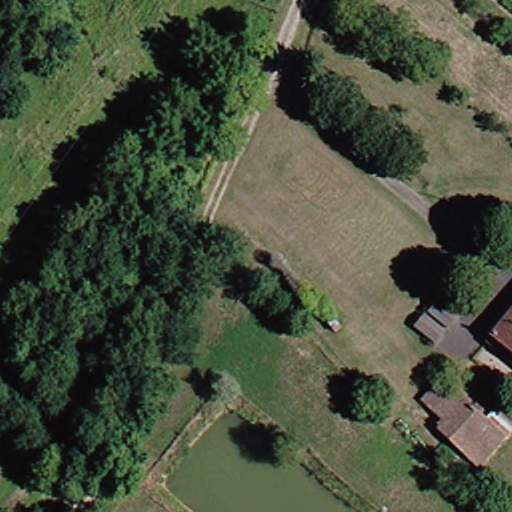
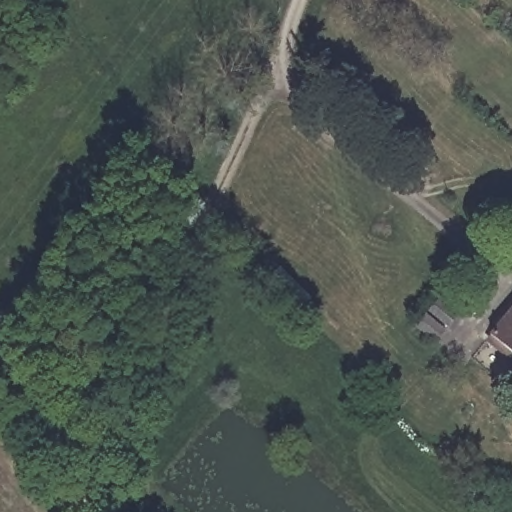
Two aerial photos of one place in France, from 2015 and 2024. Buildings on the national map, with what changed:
unchanged [(492,334),(512,309),(512,350),(492,334)]
unchanged [(437,316),(457,333),(447,344),(427,329),(437,316)]
demolished [(448,375),(507,431),(477,462),(455,443),(459,437),(422,407),(448,375)]

